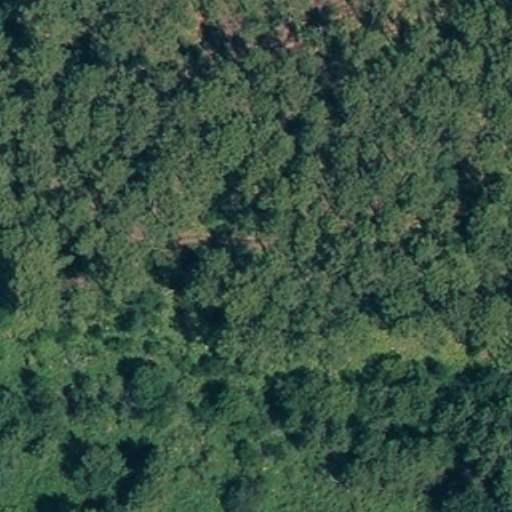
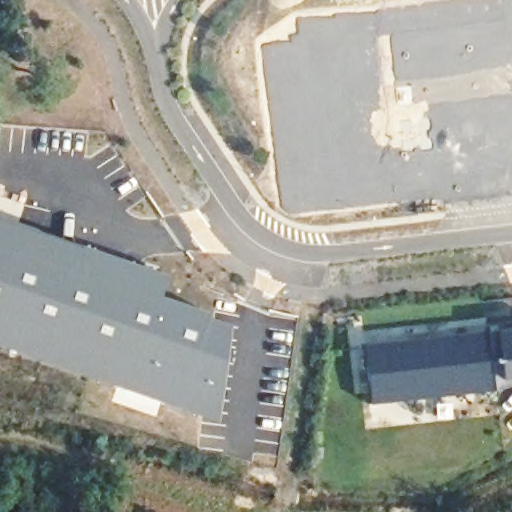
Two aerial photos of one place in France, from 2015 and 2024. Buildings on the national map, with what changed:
new [(44,232),(167,275),(161,294),(232,322),(219,416),(197,414),(137,397),(95,381),(45,364),(0,347),(0,214),(2,215),(44,232)]
new [(512,328),(512,385),(495,390),(489,331),(512,328)]
new [(370,404),(365,346),(489,331),(495,390),(370,404)]

